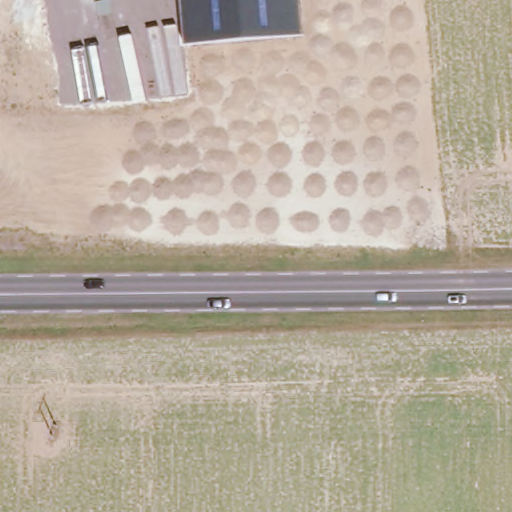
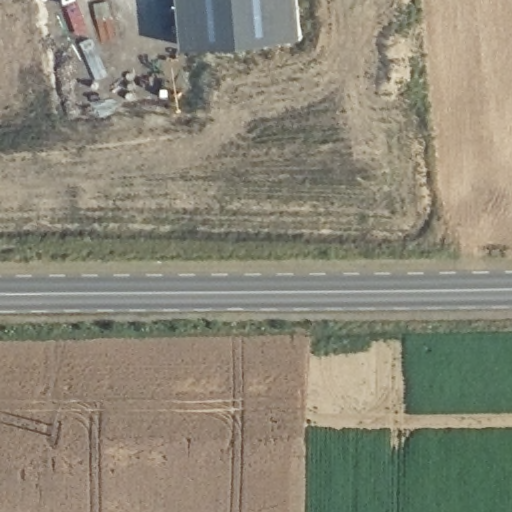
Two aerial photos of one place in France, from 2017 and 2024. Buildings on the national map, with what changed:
unchanged [(304,35),(183,45),(180,0),(301,0),(304,35)]

